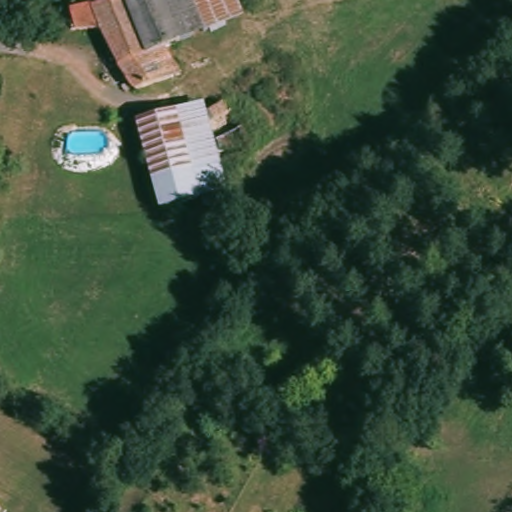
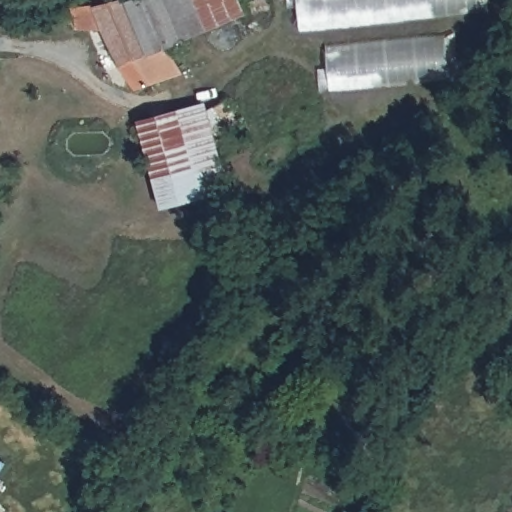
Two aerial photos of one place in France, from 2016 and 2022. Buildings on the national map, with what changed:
unchanged [(134,88),(118,66),(100,28),(75,27),(70,9),(125,0),(147,56),(165,49),(184,73),(134,88)]
unchanged [(147,56),(125,0),(239,0),(245,14),(165,49),(147,56)]
new [(297,0),(478,0),(479,14),(299,33),(297,0)]
new [(324,45),(445,32),(449,82),(329,93),(324,45)]
unchanged [(137,119),(204,102),(207,111),(224,101),(229,111),(232,109),(242,126),(217,142),(229,192),(160,208),(137,119)]

